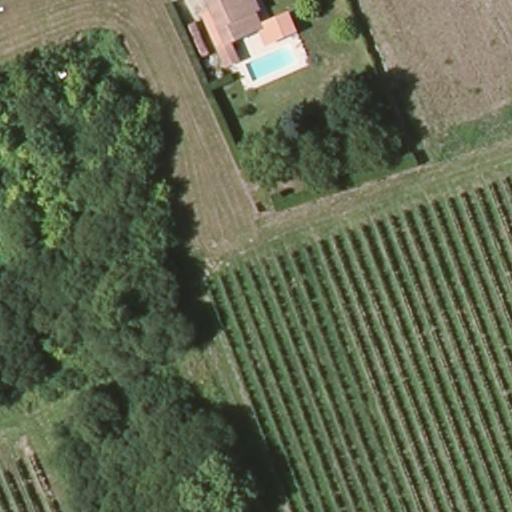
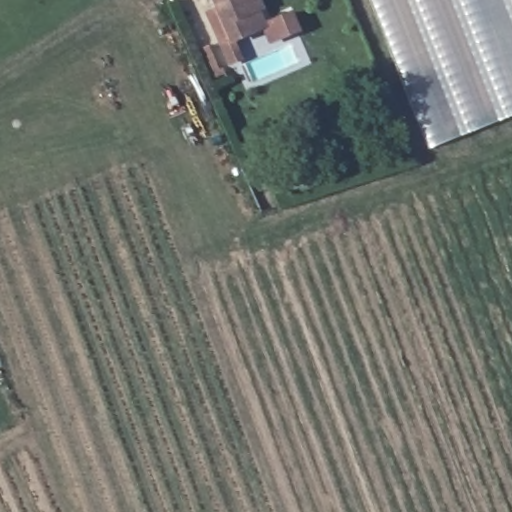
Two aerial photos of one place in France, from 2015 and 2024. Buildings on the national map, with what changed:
unchanged [(223,0),(267,0),(270,5),(265,8),(272,22),(241,36),(223,0)]
new [(368,0),(512,0),(512,116),(427,150),(368,0)]
demolished [(393,0),(512,0),(512,110),(448,135),(393,0)]

